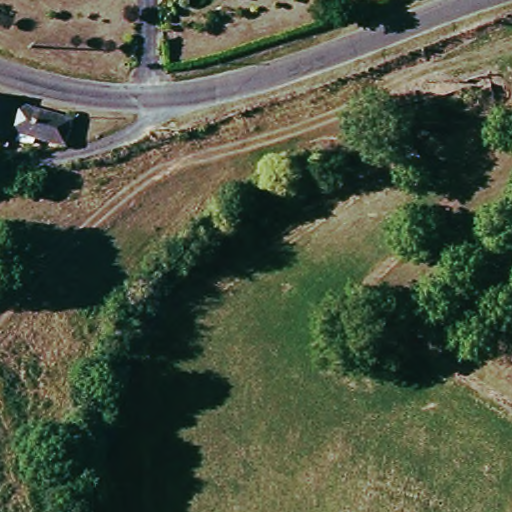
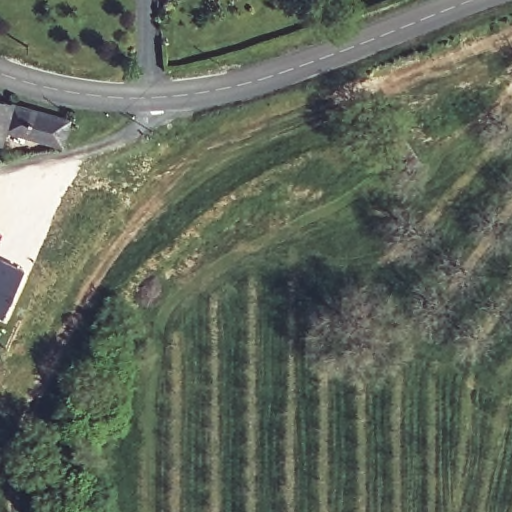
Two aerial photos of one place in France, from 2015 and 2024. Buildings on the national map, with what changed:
unchanged [(359,106),(380,96),(389,121),(366,129),(359,106)]
unchanged [(0,104),(9,107),(1,135),(0,140),(0,104)]
unchanged [(54,151),(1,135),(9,107),(63,124),(54,151)]
new [(2,319),(0,318),(0,257),(24,269),(2,319)]

